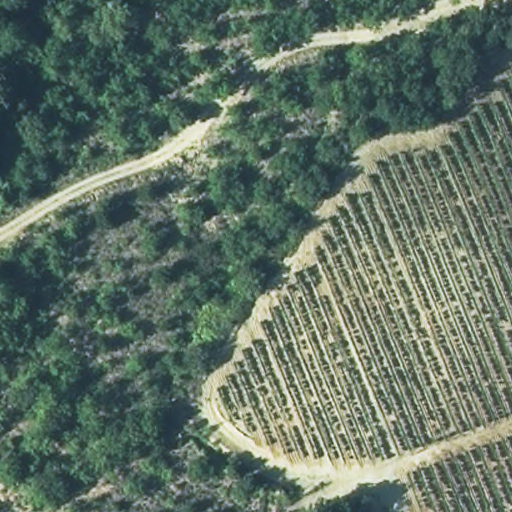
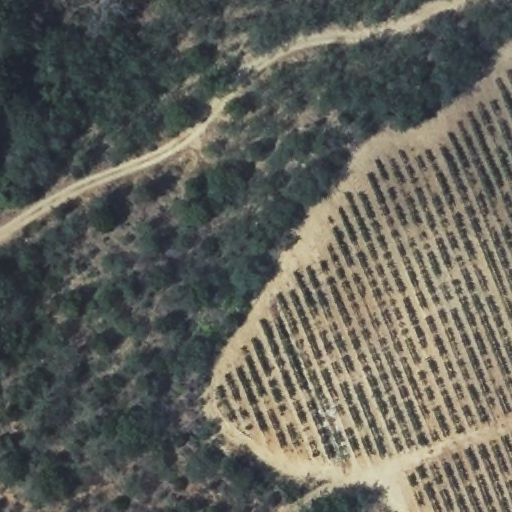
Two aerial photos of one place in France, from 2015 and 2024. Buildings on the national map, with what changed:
[]

